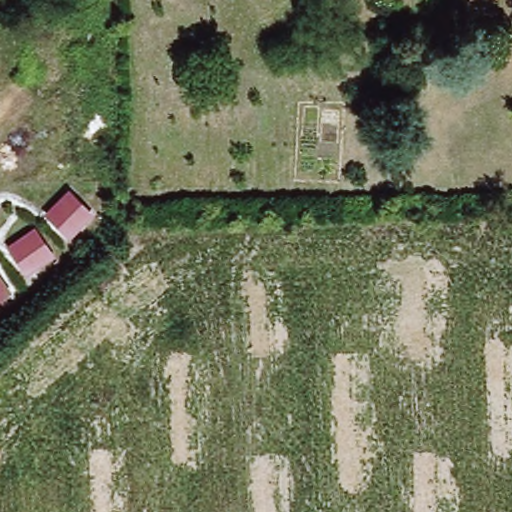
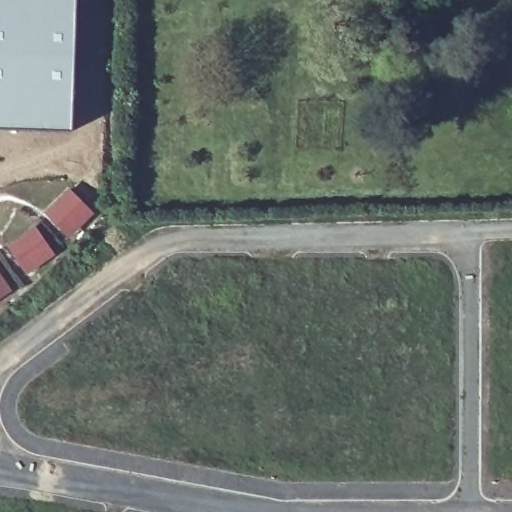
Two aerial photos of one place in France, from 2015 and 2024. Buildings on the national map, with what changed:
new [(71,130),(0,128),(0,0),(75,0),(71,130)]
unchanged [(94,214),(70,239),(43,212),(67,189),(94,214)]
unchanged [(55,255),(27,275),(5,244),(34,225),(55,255)]
unchanged [(0,298),(0,272),(11,290),(0,298)]

